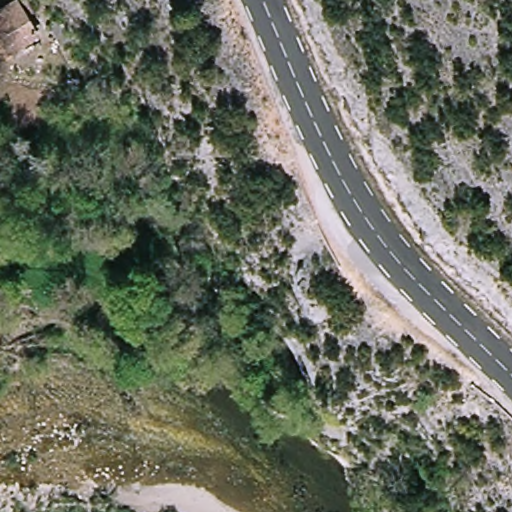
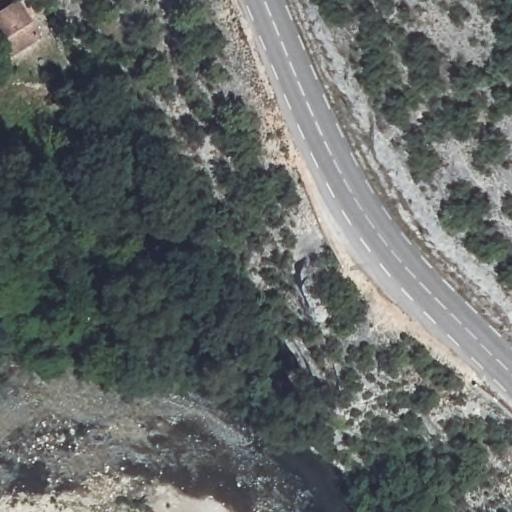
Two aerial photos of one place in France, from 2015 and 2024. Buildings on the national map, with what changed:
unchanged [(17,0),(39,36),(12,53),(0,33),(0,6),(11,0),(17,0)]

